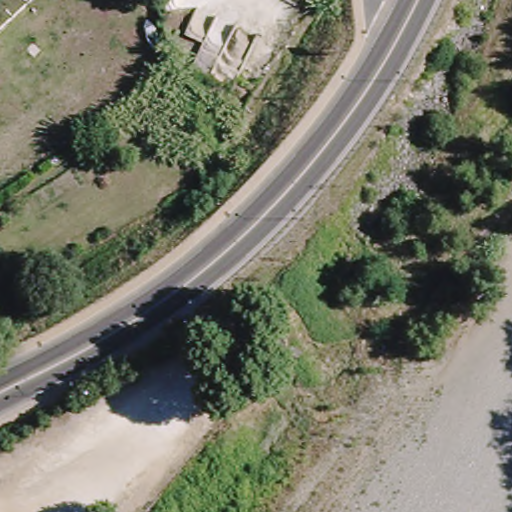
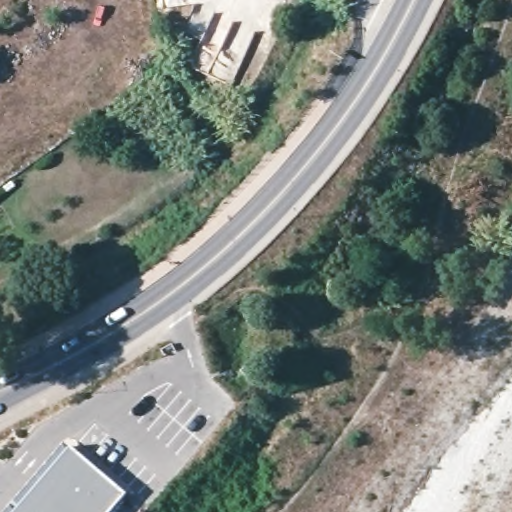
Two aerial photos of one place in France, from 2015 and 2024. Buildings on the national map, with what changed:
unchanged [(257,352),(238,369),(221,348),(239,331),(257,352)]
new [(111,512),(5,512),(64,443),(126,495),(111,512)]

